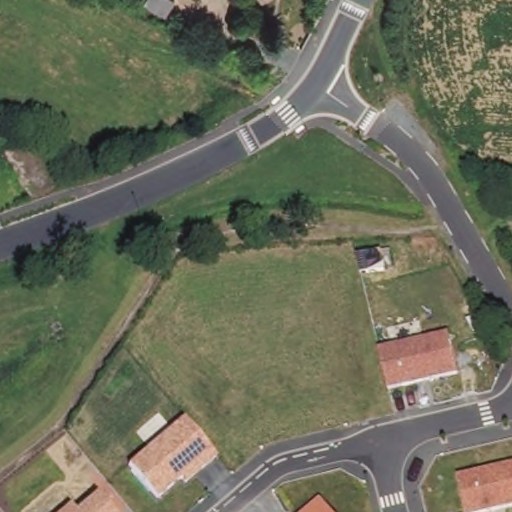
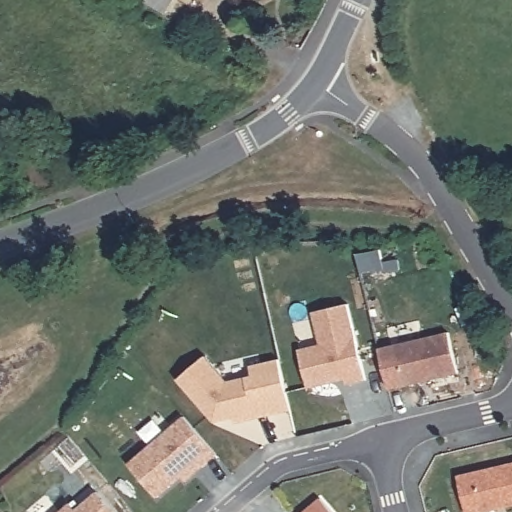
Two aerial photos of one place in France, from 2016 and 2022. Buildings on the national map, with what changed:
unchanged [(355,252),(382,247),(386,270),(360,275),(355,252)]
new [(311,387),(304,349),(326,345),(321,312),(356,306),(369,383),(350,387),(349,381),(333,384),(311,387)]
unchanged [(449,332),(460,376),(390,393),(382,350),(449,332)]
new [(236,424),(235,417),(214,422),(178,380),(206,355),(228,382),(253,375),(251,366),(280,359),(291,410),(236,424)]
unchanged [(185,483),(180,478),(156,498),(128,462),(183,414),(217,453),(185,483)]
unchanged [(486,512),(465,512),(456,475),(512,462),(512,506),(486,512)]
unchanged [(72,503),(78,510),(99,492),(116,512),(60,512),(72,503)]
unchanged [(333,512),(305,512),(322,498),(333,512)]

